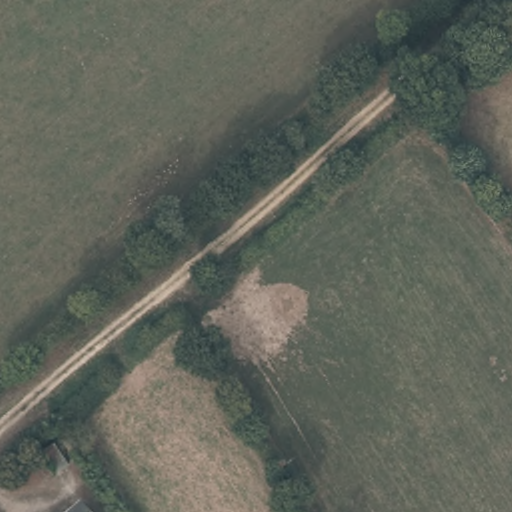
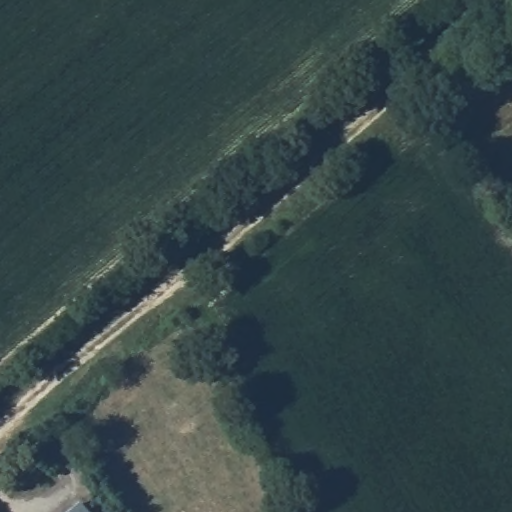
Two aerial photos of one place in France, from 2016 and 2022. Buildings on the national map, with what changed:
unchanged [(80,512),(73,512),(77,508),(80,512)]

